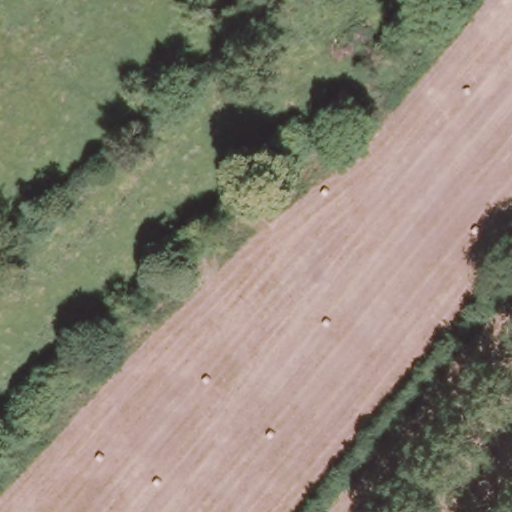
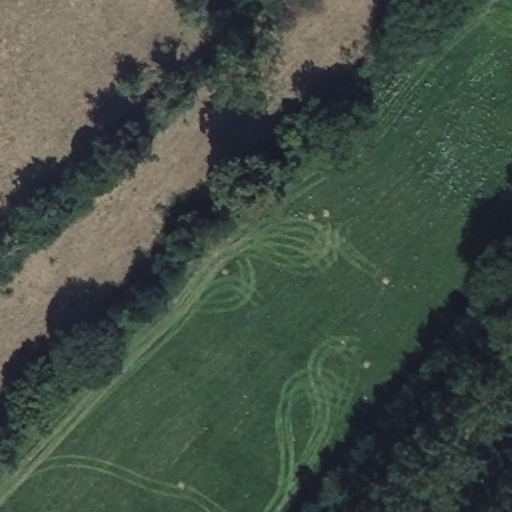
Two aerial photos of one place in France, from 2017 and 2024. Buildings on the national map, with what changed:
unchanged [(369,119),(335,154),(320,139),(354,103),(369,119)]

